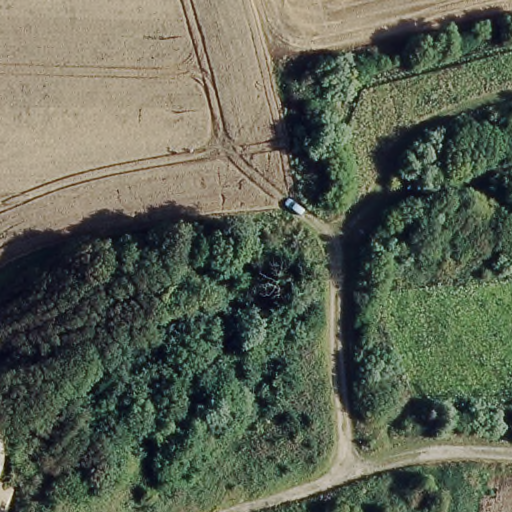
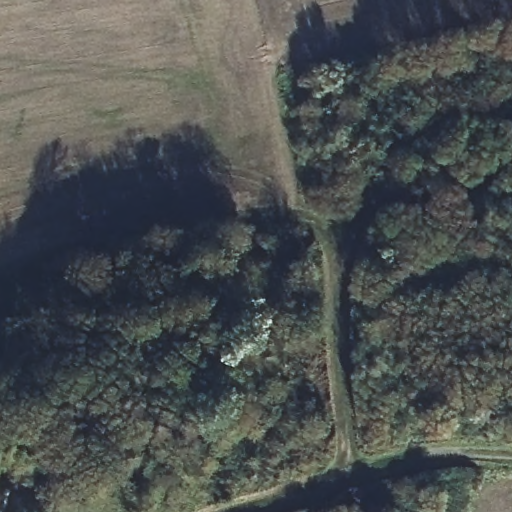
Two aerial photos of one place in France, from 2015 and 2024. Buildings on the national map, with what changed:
unchanged [(2,462),(0,475),(0,427),(4,448),(2,462)]

